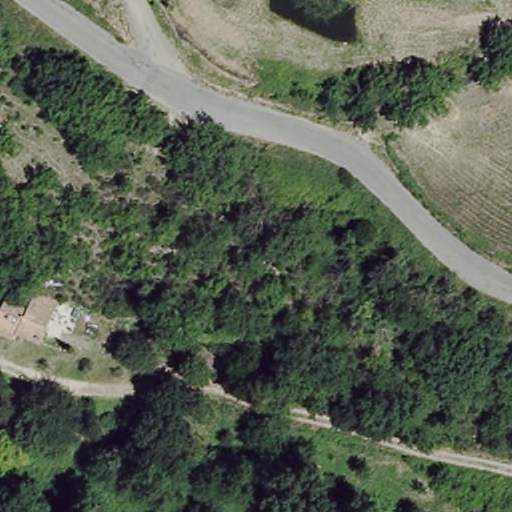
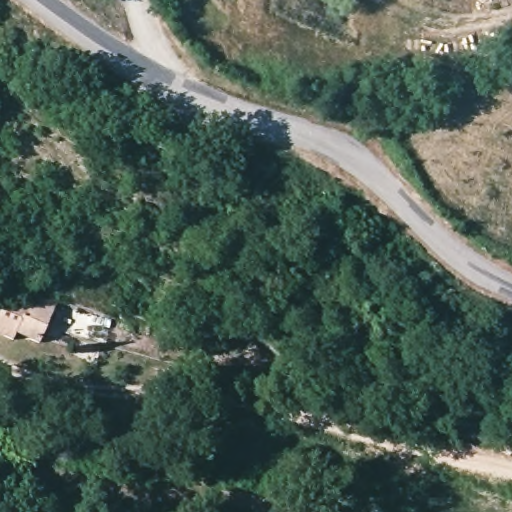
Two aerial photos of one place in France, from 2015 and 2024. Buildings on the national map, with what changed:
unchanged [(35,305),(55,318),(40,345),(15,332),(11,337),(0,331),(0,317),(8,304),(30,314),(35,305)]

